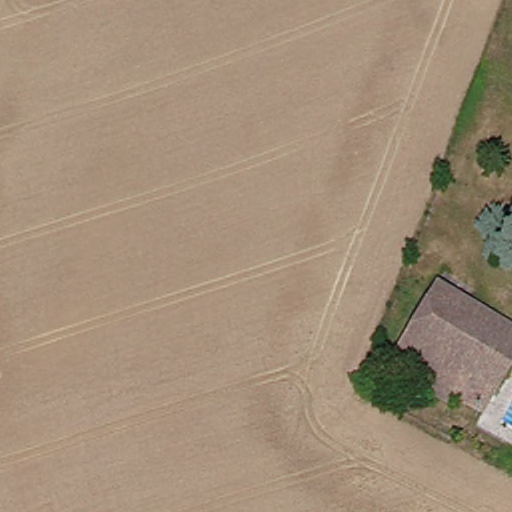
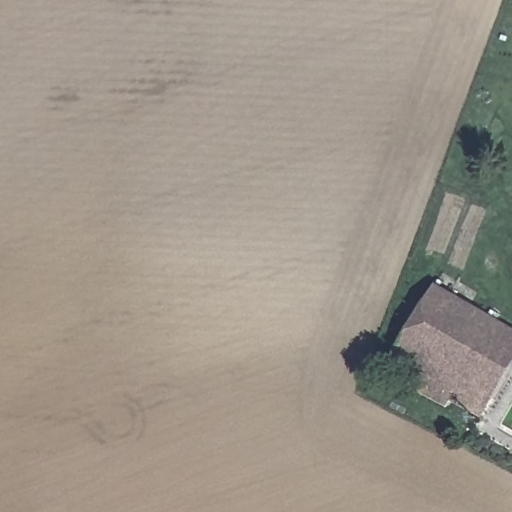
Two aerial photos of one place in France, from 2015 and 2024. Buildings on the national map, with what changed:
unchanged [(466,387),(480,397),(469,416),(439,400),(434,408),(375,373),(425,285),(502,330),(466,387)]
unchanged [(512,335),(512,344),(480,397),(466,387),(502,330),(512,335)]

